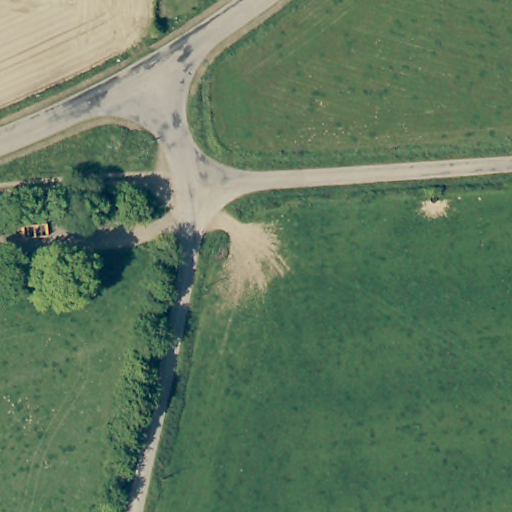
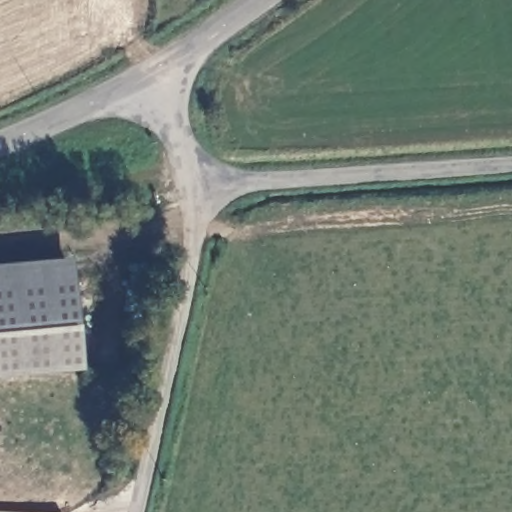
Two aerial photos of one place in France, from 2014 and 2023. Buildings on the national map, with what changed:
new [(70,256),(81,367),(0,375),(0,262),(70,256)]

